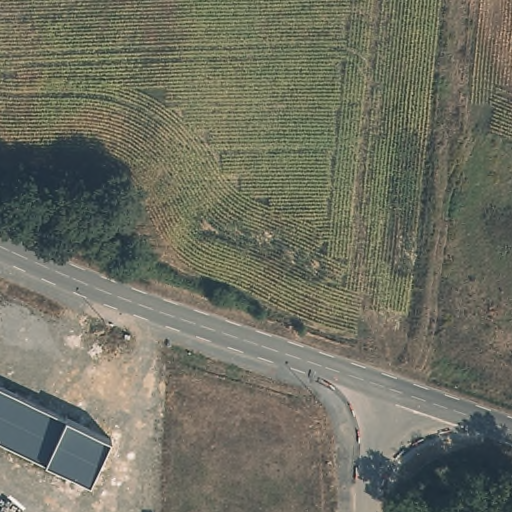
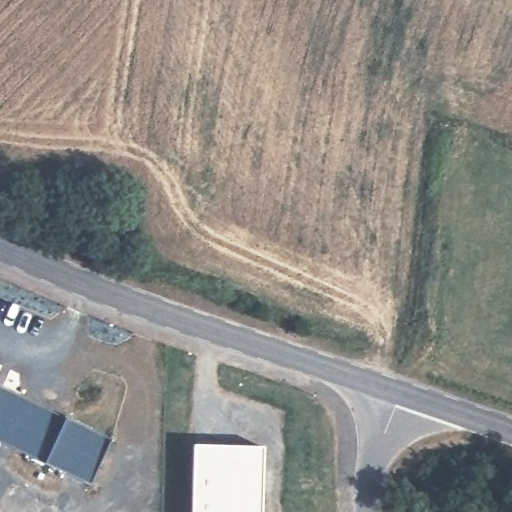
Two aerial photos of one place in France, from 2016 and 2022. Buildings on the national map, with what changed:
unchanged [(0,388),(66,420),(111,439),(91,484),(45,463),(0,442),(0,388)]
new [(261,445),(258,512),(188,512),(190,444),(261,445)]

